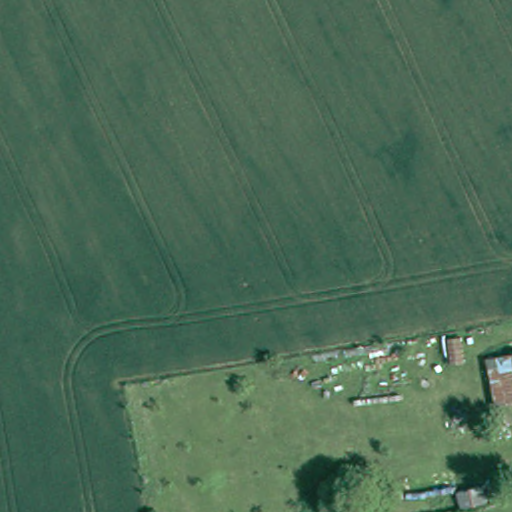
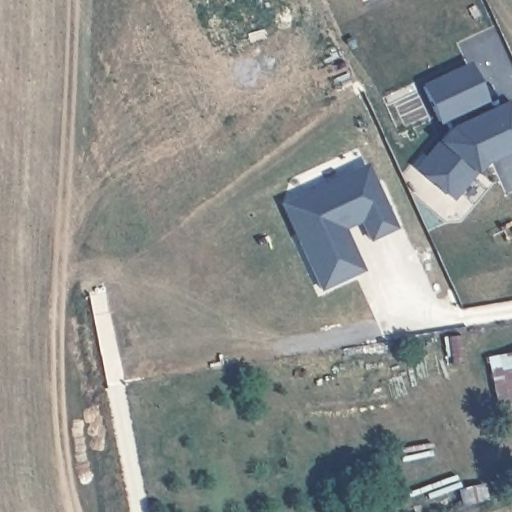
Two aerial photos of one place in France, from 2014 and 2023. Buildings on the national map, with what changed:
new [(487,101),(436,124),(419,86),(468,64),(487,101)]
new [(512,153),(483,164),(474,175),(451,203),(411,171),(433,142),(446,127),(505,101),(512,117),(512,153)]
new [(368,241),(360,222),(344,229),(363,271),(320,292),(279,202),(365,160),(395,228),(368,241)]
unchanged [(512,367),(508,352),(512,351),(512,367)]

